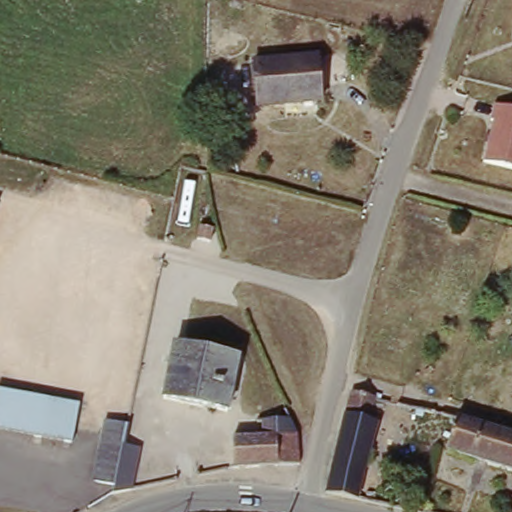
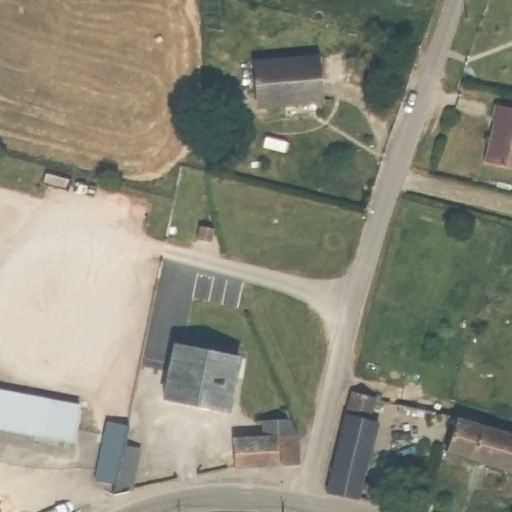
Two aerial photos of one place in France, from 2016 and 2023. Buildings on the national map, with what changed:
unchanged [(326,52),(329,98),(263,102),(261,58),(326,52)]
unchanged [(512,167),(485,161),(498,119),(491,117),(497,100),(512,104),(512,167)]
unchanged [(212,227),(208,243),(195,240),(199,224),(212,227)]
unchanged [(240,357),(229,411),(167,398),(180,344),(240,357)]
unchanged [(86,404),(78,441),(0,424),(0,385),(86,404)]
unchanged [(353,389),(381,396),(374,421),(383,423),(362,497),(331,489),(353,389)]
unchanged [(306,460),(305,463),(239,472),(236,440),(259,439),(259,421),(293,416),(302,435),(307,457),(306,460)]
unchanged [(451,450),(462,418),(512,432),(512,469),(484,461),(451,450)]
unchanged [(111,496),(113,482),(93,479),(106,419),(126,423),(122,444),(141,448),(130,490),(117,493),(111,496)]

